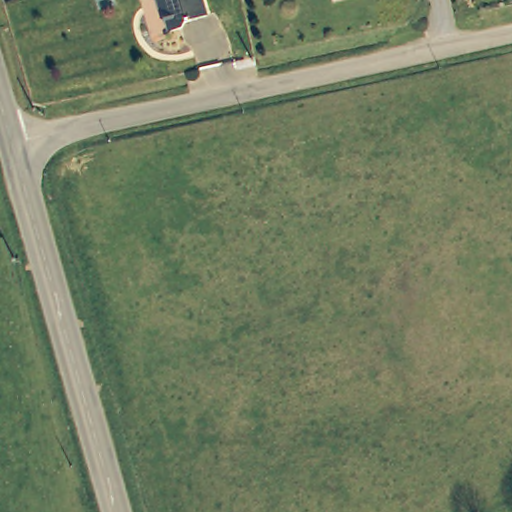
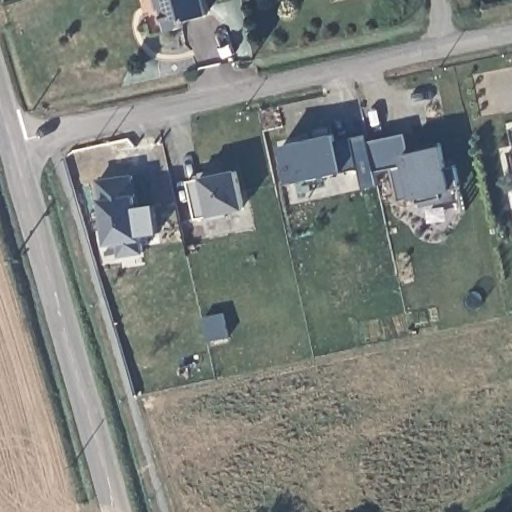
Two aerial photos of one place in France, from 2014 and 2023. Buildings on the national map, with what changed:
unchanged [(156,0),(199,0),(206,22),(184,29),(179,35),(167,39),(156,0)]
new [(317,139),(312,130),(331,126),(333,135),(336,144),(351,140),(357,170),(342,173),(289,185),(280,146),(317,139)]
new [(511,130),(512,130),(512,134),(511,130)]
new [(410,153),(442,146),(447,169),(455,166),(458,187),(453,189),(455,200),(417,207),(416,199),(412,200),(398,202),(392,170),(375,173),(368,142),(405,135),(410,153)]
new [(508,152),(512,152),(512,171),(508,152)]
new [(200,178),(237,171),(245,210),(229,213),(228,217),(210,221),(209,217),(195,220),(187,182),(200,178)]
new [(136,195),(138,209),(155,207),(158,233),(142,235),(145,254),(120,257),(119,245),(107,246),(100,200),(97,180),(133,175),(136,195)]

